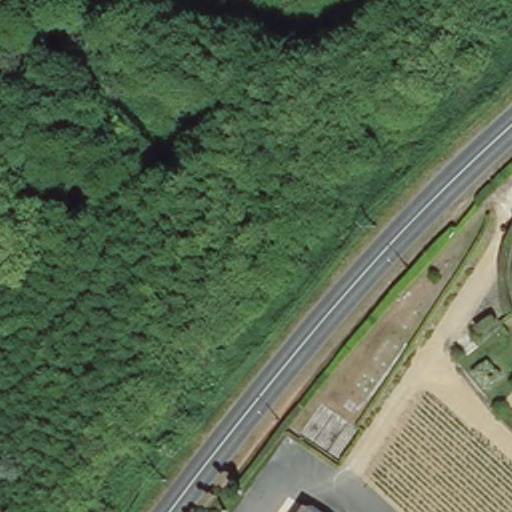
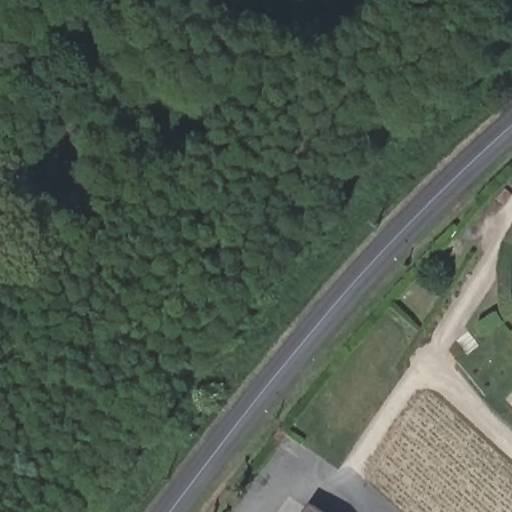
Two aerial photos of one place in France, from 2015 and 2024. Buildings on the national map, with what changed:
unchanged [(334,512),(303,512),(313,497),(334,512)]

